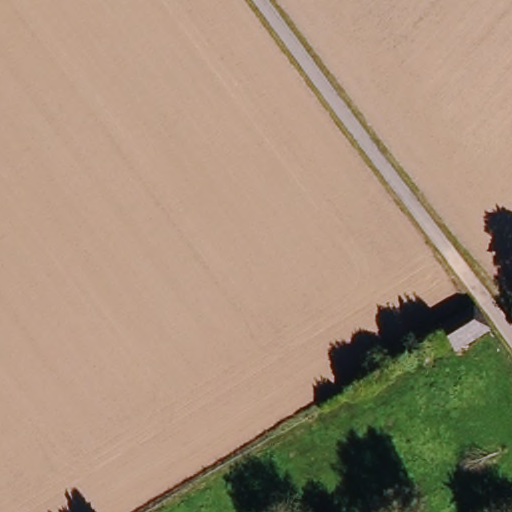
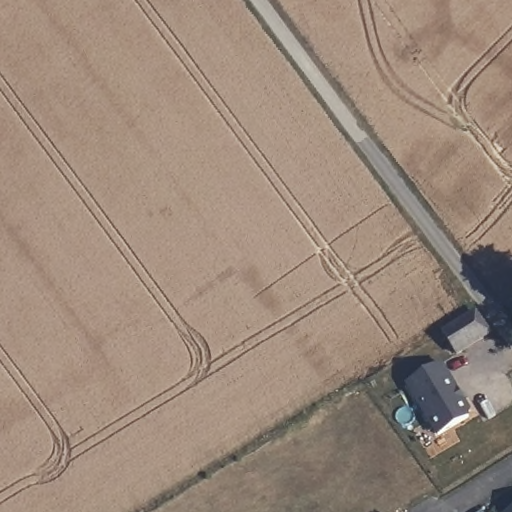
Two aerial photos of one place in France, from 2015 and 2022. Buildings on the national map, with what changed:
unchanged [(488,338),(454,360),(440,338),(473,318),(488,338)]
new [(439,365),(447,378),(449,377),(457,391),(455,392),(460,401),(462,399),(470,411),(467,418),(438,436),(407,384),(439,365)]

